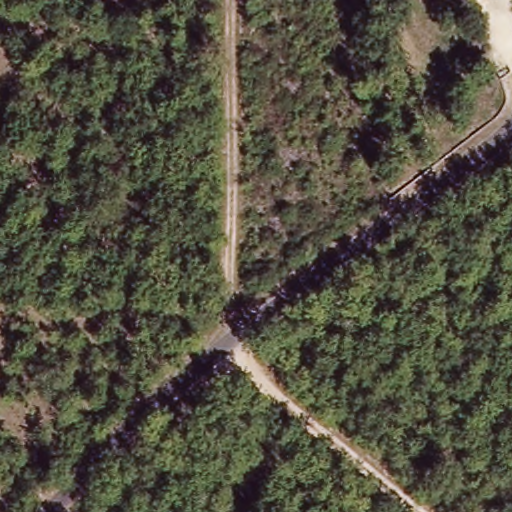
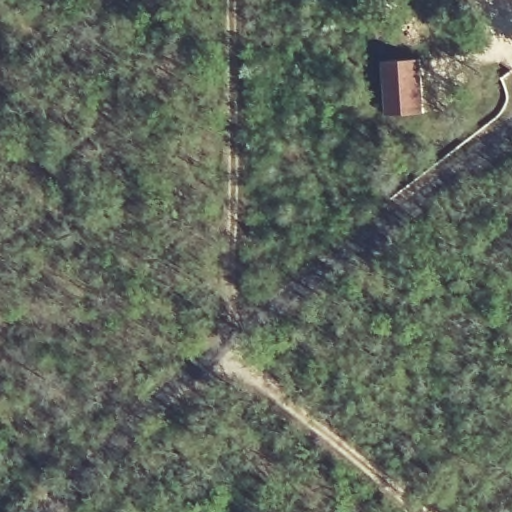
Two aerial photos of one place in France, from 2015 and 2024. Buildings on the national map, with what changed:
new [(424,112),(386,115),(383,60),(420,58),(424,112)]
demolished [(386,77),(390,64),(401,66),(397,81),(386,77)]

